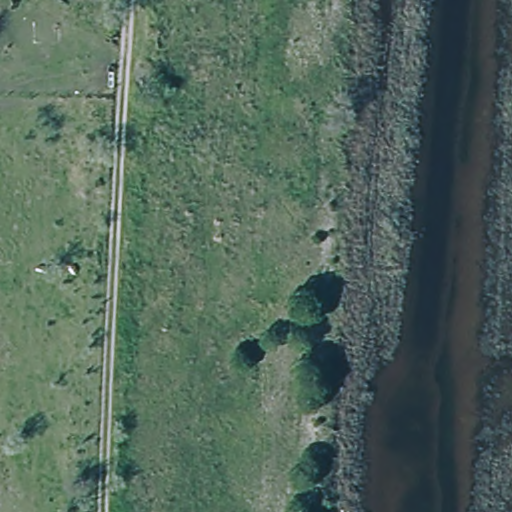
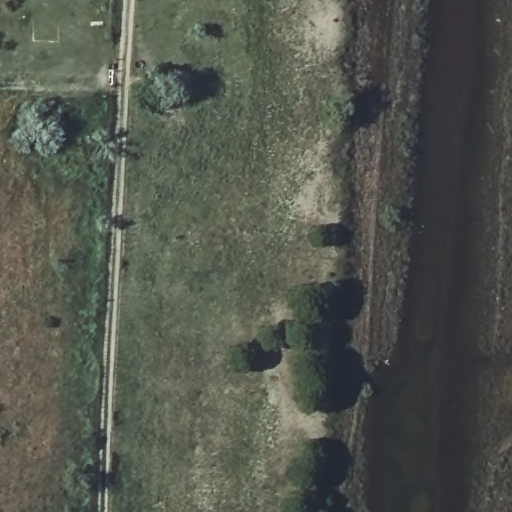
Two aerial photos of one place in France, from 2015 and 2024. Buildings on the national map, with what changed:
[]

